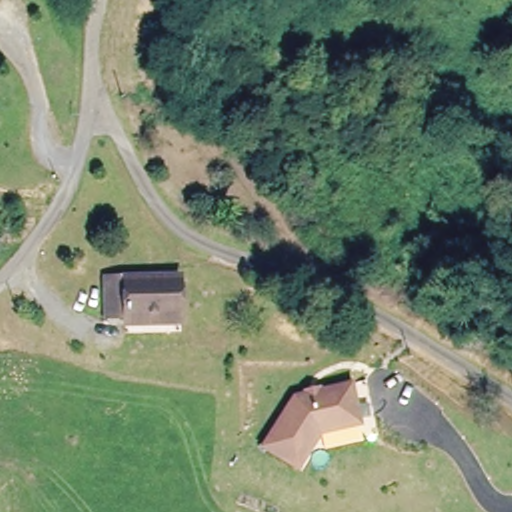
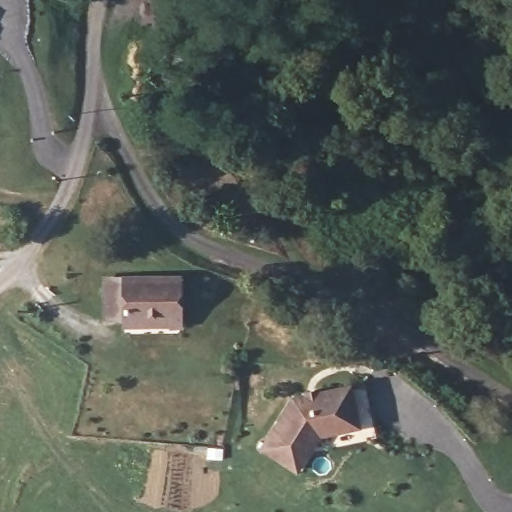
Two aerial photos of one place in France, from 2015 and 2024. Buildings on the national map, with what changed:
unchanged [(126,325),(126,317),(104,317),(104,280),(178,279),(178,316),(178,324),(126,325)]
unchanged [(348,375),(358,413),(319,424),(299,460),(264,439),(293,388),(348,375)]

